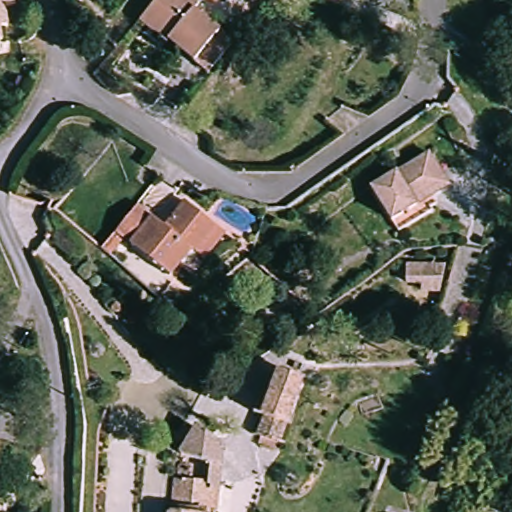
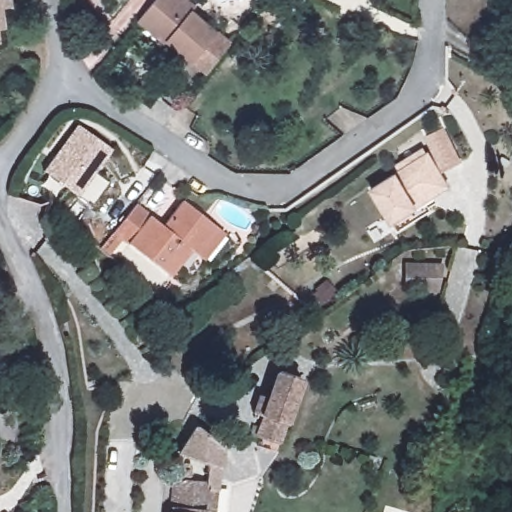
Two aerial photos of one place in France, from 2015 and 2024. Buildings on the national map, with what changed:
unchanged [(187,58),(162,38),(158,41),(132,20),(138,13),(149,0),(184,0),(190,6),(188,8),(211,28),(224,39),(224,40),(200,69),(187,58)]
new [(113,150),(97,170),(110,180),(91,205),(79,197),(44,171),(77,125),(113,150)]
new [(426,138),(445,129),(462,163),(444,172),(426,138)]
unchanged [(427,161),(442,192),(385,222),(368,191),(427,161)]
unchanged [(112,235),(132,207),(162,227),(180,202),(212,223),(220,228),(201,255),(193,251),(175,277),(112,235)]
unchanged [(255,397),(269,401),(278,372),(302,380),(283,445),(259,439),(263,422),(250,418),(255,397)]
unchanged [(163,511),(169,511),(171,466),(182,467),(182,480),(200,480),(201,470),(173,455),(188,428),(217,444),(214,512),(163,512),(163,511)]

